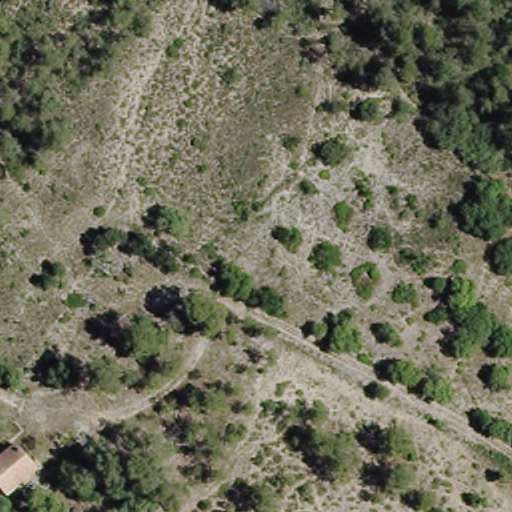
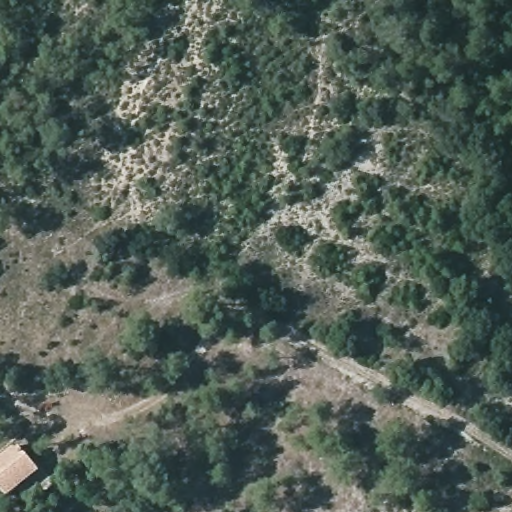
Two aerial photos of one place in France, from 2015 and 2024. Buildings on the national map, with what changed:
unchanged [(20,488),(8,498),(0,488),(0,457),(15,444),(31,462),(41,471),(20,488)]

